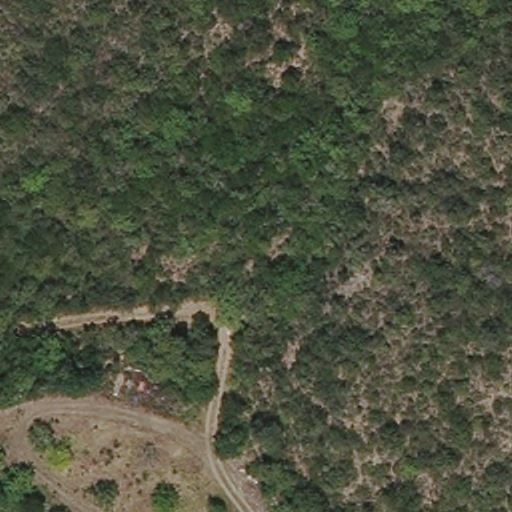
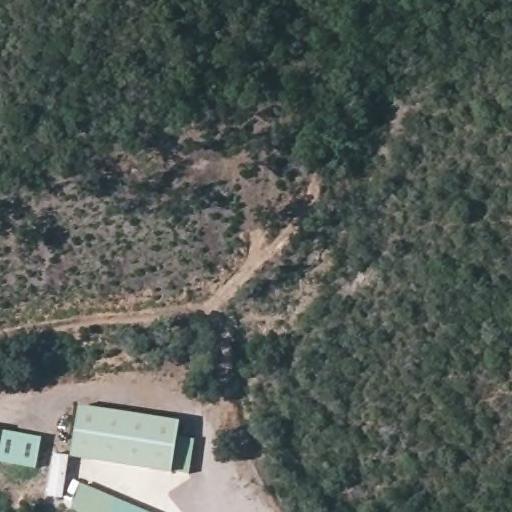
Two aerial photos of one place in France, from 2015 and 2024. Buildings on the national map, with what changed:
new [(72,456),(80,406),(180,421),(177,436),(194,439),(189,474),(170,470),(170,474),(72,456)]
new [(0,462),(0,430),(43,438),(37,469),(0,462)]
new [(73,509),(82,484),(148,512),(81,512),(73,509)]

